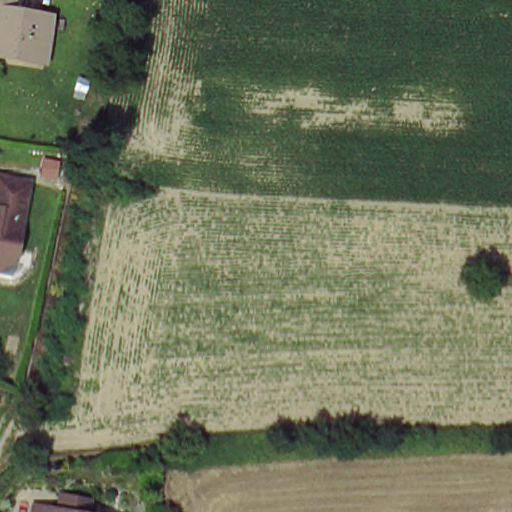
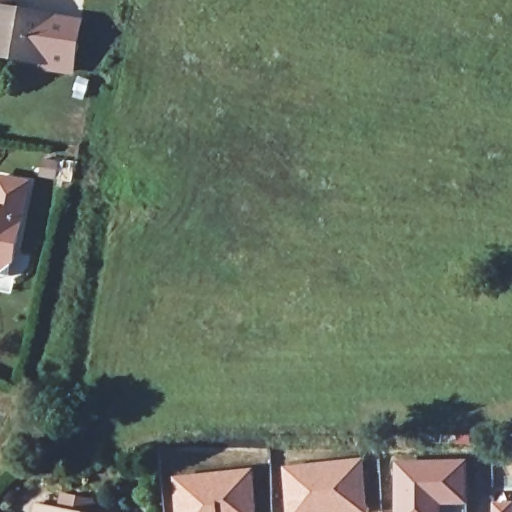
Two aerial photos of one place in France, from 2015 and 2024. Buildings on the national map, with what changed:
unchanged [(15,12),(52,20),(45,61),(1,52),(0,52),(0,0),(18,0),(15,12)]
unchanged [(25,185),(10,262),(0,260),(0,181),(25,185)]
new [(369,512),(287,512),(281,464),(363,457),(369,512)]
new [(468,507),(445,507),(446,512),(394,512),(393,457),(468,458),(468,507)]
new [(259,512),(176,512),(172,476),(253,467),(259,512)]
new [(512,512),(491,512),(490,501),(512,500),(512,512)]
unchanged [(85,512),(32,512),(32,507),(85,512)]

